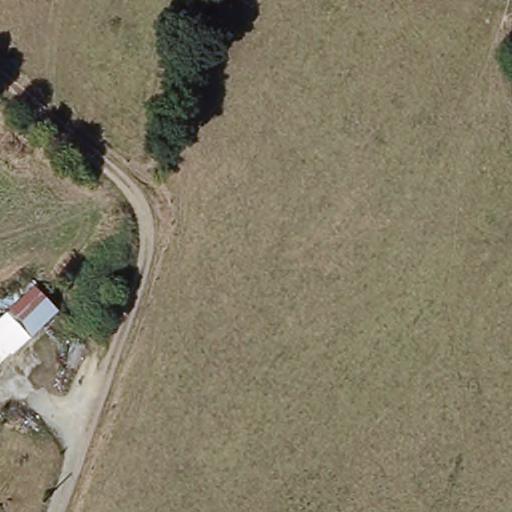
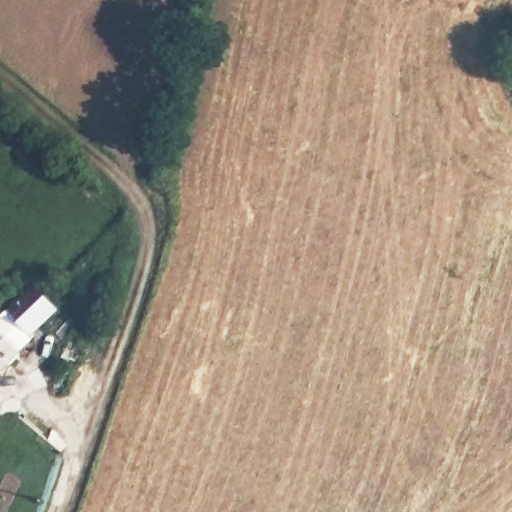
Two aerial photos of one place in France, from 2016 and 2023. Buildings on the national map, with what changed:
unchanged [(35,283),(57,308),(10,353),(7,352),(0,359),(0,316),(35,283)]

